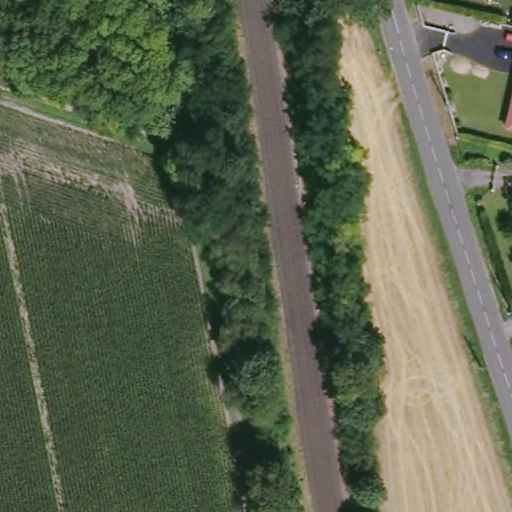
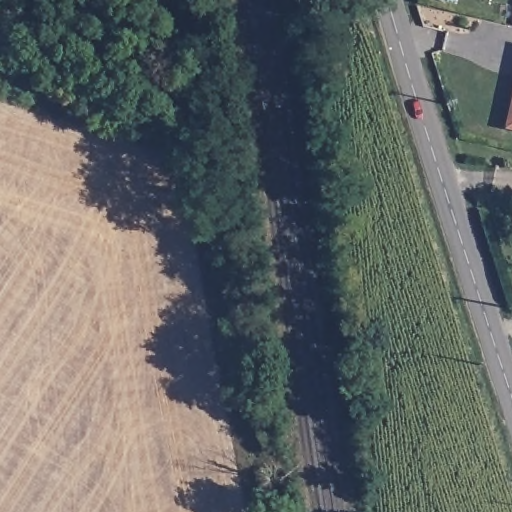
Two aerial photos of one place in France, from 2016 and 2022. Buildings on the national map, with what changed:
unchanged [(511,103),(512,97),(512,130),(504,128),(511,103)]

